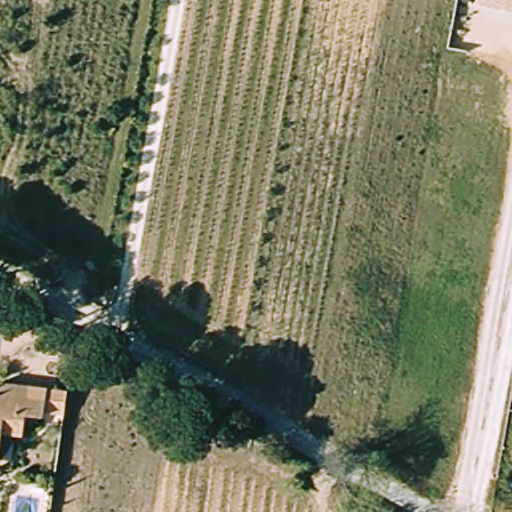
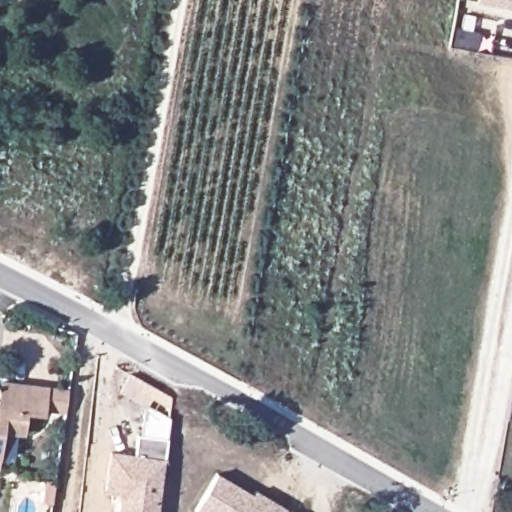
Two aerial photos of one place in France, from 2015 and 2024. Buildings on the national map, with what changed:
unchanged [(475,1),(475,0),(512,0),(512,9),(475,1)]
unchanged [(28,412),(25,435),(4,432),(1,459),(0,459),(0,409),(4,409),(7,382),(69,391),(66,418),(28,412)]
new [(135,455),(138,435),(168,439),(165,459),(158,512),(118,512),(121,494),(106,491),(111,452),(135,455)]
new [(218,472),(253,494),(256,490),(289,512),(193,512),(218,472)]

